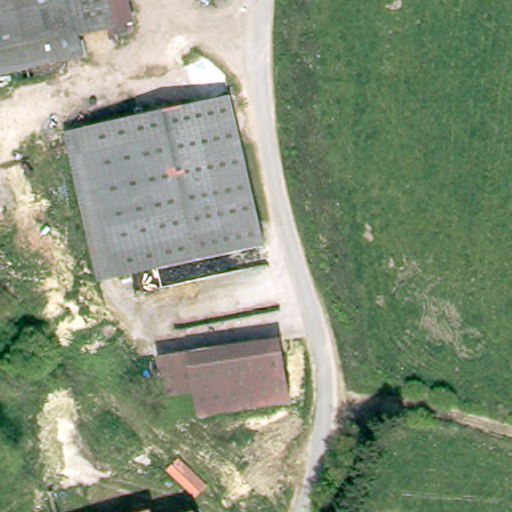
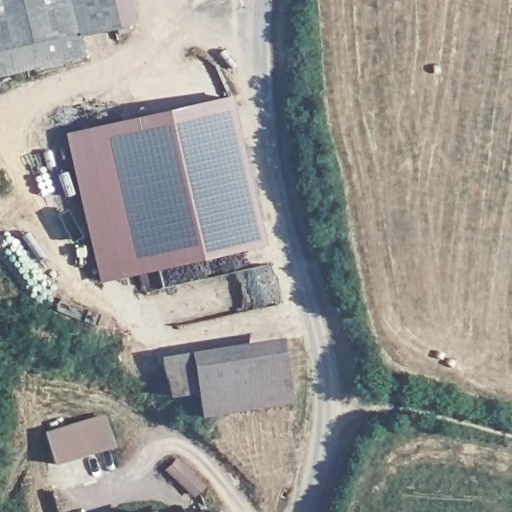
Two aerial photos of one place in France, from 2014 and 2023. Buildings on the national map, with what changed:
unchanged [(120,25),(82,33),(88,56),(0,77),(0,0),(114,0),(120,25)]
unchanged [(230,97),(264,245),(173,266),(139,118),(230,97)]
unchanged [(100,282),(66,134),(139,118),(173,266),(100,282)]
unchanged [(166,353),(287,343),(295,393),(199,401),(196,384),(171,387),(166,353)]
new [(51,465),(43,431),(104,414),(114,448),(51,465)]
unchanged [(152,469),(165,512),(54,512),(49,497),(152,469)]
new [(152,512),(144,512),(151,510),(152,512)]

